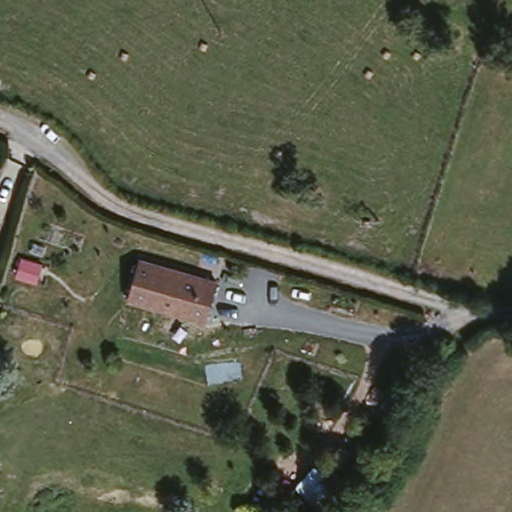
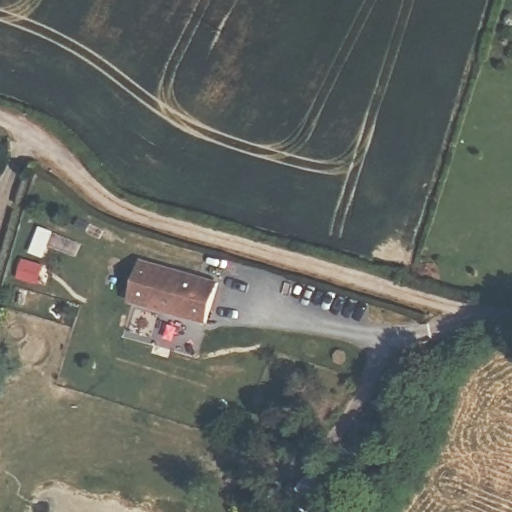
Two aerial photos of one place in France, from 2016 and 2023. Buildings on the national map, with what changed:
unchanged [(200,336),(123,312),(136,272),(212,296),(200,336)]

